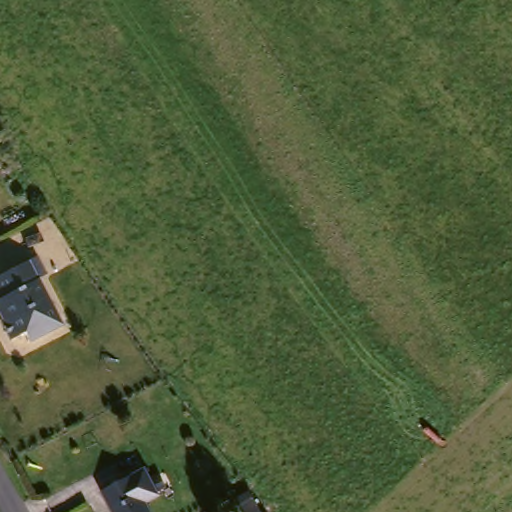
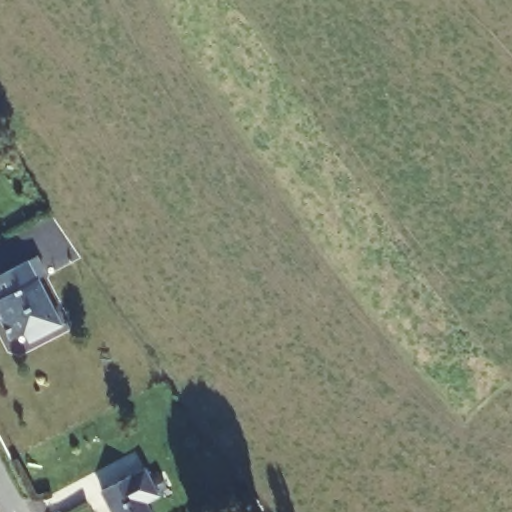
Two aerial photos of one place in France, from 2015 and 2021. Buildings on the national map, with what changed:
unchanged [(40,257),(71,323),(37,339),(33,330),(20,336),(10,316),(19,311),(2,275),(40,257)]
unchanged [(166,491),(152,498),(160,512),(121,512),(108,487),(152,464),(166,491)]

